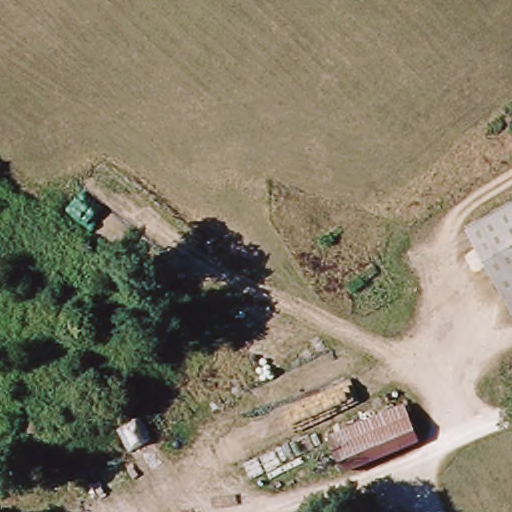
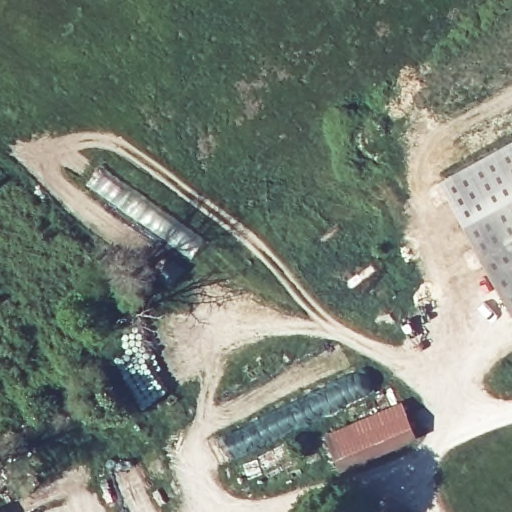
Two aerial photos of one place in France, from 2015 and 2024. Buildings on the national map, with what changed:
new [(440,180),(512,140),(512,200),(463,226),(440,180)]
unchanged [(512,311),(463,226),(512,200),(512,311)]
unchanged [(423,437),(342,469),(327,435),(410,399),(423,437)]
new [(222,440),(271,416),(286,418),(320,401),(326,414),(302,426),(300,422),(231,456),(222,440)]

